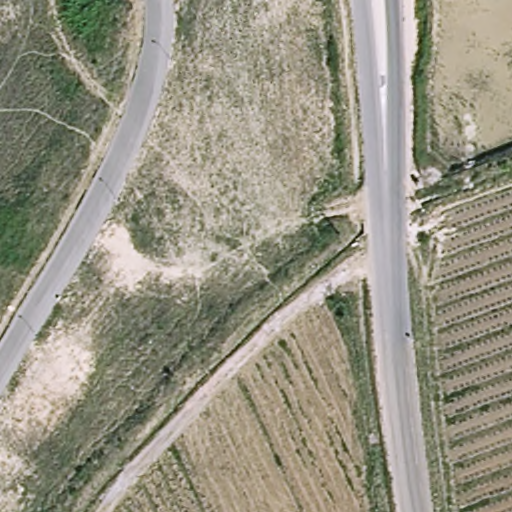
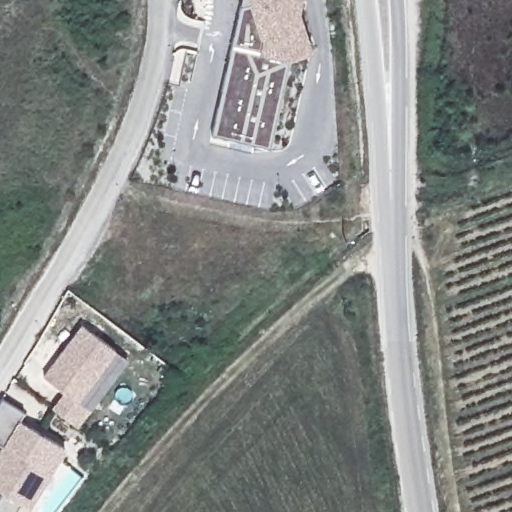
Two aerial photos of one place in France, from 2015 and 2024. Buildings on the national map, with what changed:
new [(312,50),(289,59),(270,148),(252,144),(251,151),(228,145),(230,140),(212,136),(241,0),(303,0),(300,13),(312,50)]
new [(78,400),(89,407),(77,424),(51,406),(64,389),(42,374),(80,324),(116,349),(78,400)]
new [(27,506),(20,502),(14,512),(0,512),(0,493),(2,490),(0,488),(0,446),(2,444),(0,443),(0,401),(2,399),(23,410),(18,419),(63,447),(27,506)]

